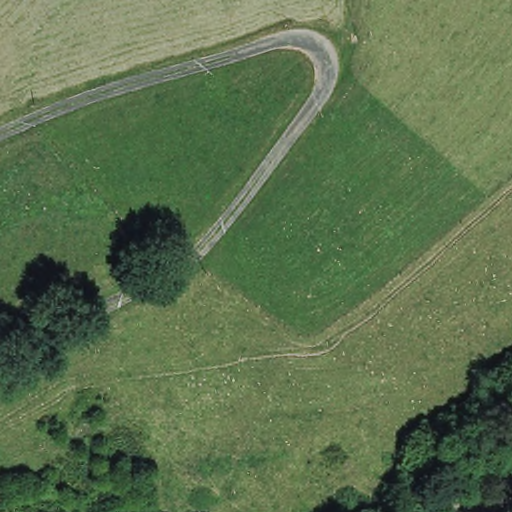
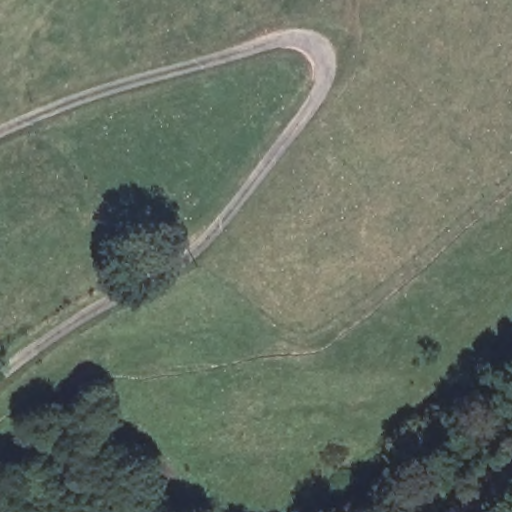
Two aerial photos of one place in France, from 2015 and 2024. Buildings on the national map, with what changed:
[]

